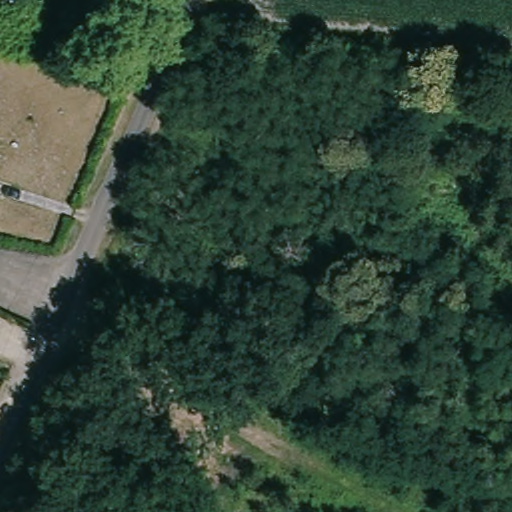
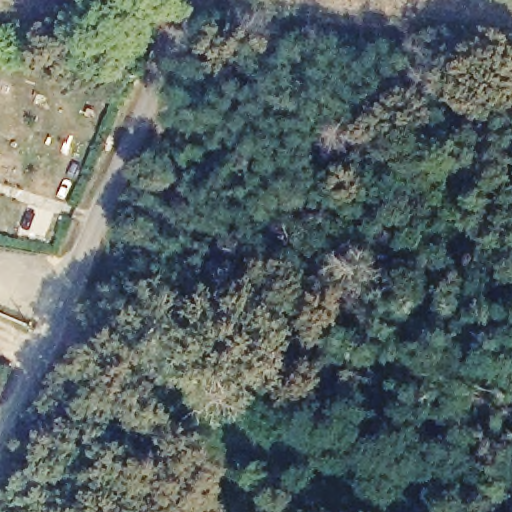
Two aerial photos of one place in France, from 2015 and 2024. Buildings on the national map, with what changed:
unchanged [(0,178),(0,164),(4,165),(0,178)]

